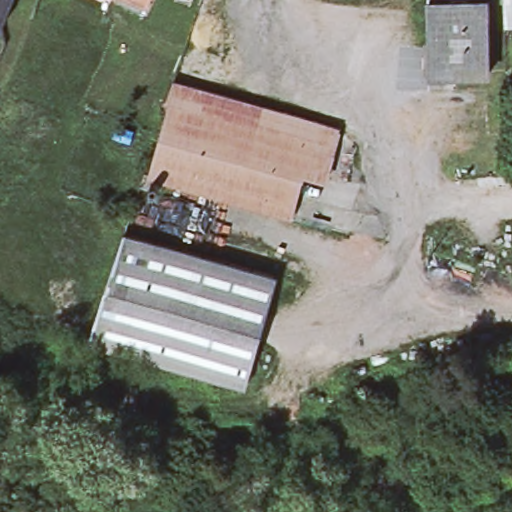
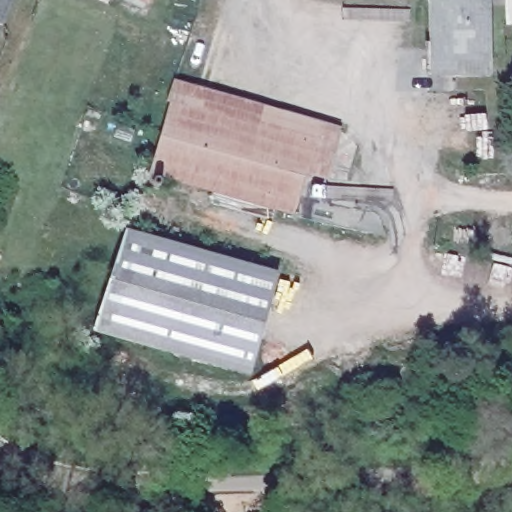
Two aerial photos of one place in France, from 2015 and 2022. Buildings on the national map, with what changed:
unchanged [(0,23),(0,0),(14,0),(5,25),(0,23)]
unchanged [(512,0),(512,25),(505,25),(504,4),(489,4),(490,71),(430,72),(429,1),(489,0),(512,0)]
unchanged [(166,101),(174,78),(320,121),(292,217),(149,170),(170,103),(166,101)]
unchanged [(274,276),(246,377),(93,329),(126,228),(274,276)]

